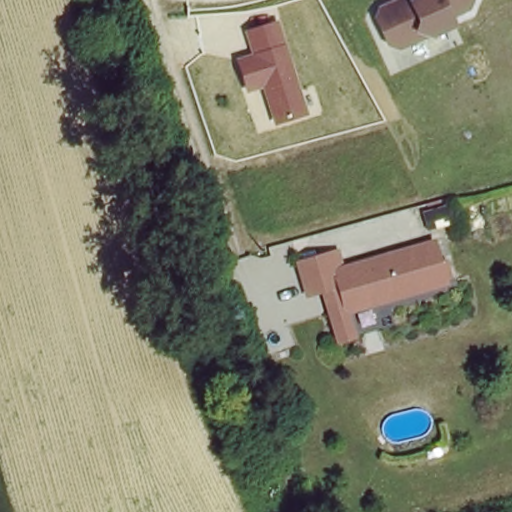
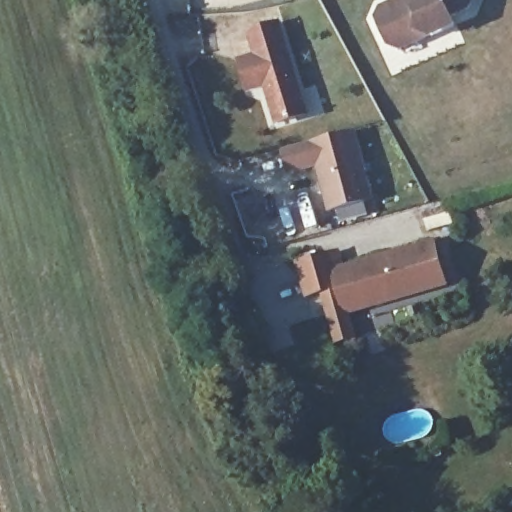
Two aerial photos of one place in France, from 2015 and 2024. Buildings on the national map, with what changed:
unchanged [(466,4),(438,17),(442,24),(427,31),(417,28),(388,42),(376,17),(380,7),(393,0),(467,0),(466,4)]
unchanged [(310,114),(277,126),(265,88),(249,92),(237,59),(253,53),(246,31),(281,21),(310,114)]
new [(317,169),(288,175),(282,150),(356,130),(375,201),(328,212),(317,169)]
unchanged [(297,259),(330,250),(334,265),(432,237),(438,257),(447,255),(450,269),(442,271),(445,279),(387,296),(385,288),(345,300),(339,280),(322,285),(305,290),(297,259)]
unchanged [(347,308),(353,330),(336,335),(322,285),(339,280),(345,300),(385,288),(387,296),(347,308)]

